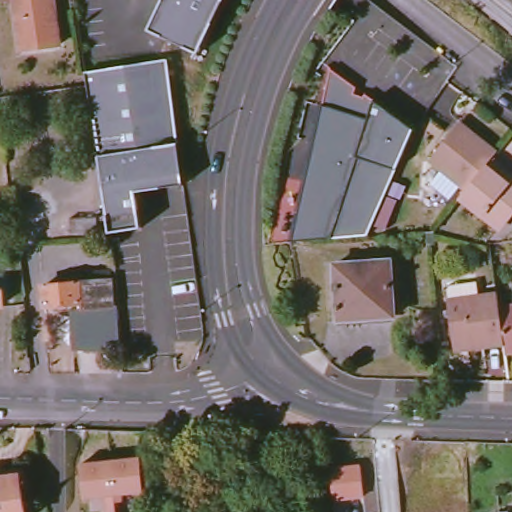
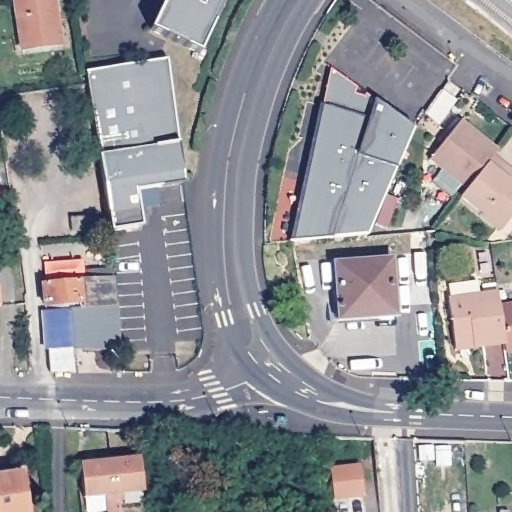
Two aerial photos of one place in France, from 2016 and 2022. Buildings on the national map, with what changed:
unchanged [(59,46),(20,51),(12,0),(52,0),(59,46)]
unchanged [(162,0),(161,0),(223,0),(198,54),(148,31),(162,0)]
unchanged [(182,143),(188,184),(140,192),(145,227),(115,231),(92,85),(90,74),(138,66),(170,60),(171,60),(182,143)]
unchanged [(303,195),(307,182),(312,158),(315,141),(323,106),(332,68),(358,88),(366,94),(414,130),(410,138),(378,213),(368,235),(305,241),(298,242),(292,242),(303,195)]
unchanged [(461,123),(499,153),(493,160),(467,192),(430,161),(461,123)]
unchanged [(501,233),(460,200),(466,194),(467,192),(493,160),(512,176),(512,219),(501,233)]
unchanged [(97,216),(97,230),(70,231),(70,217),(97,216)]
unchanged [(387,259),(393,316),(337,322),(331,265),(387,259)]
unchanged [(110,281),(112,306),(117,306),(118,324),(86,327),(85,308),(82,308),(82,304),(45,306),(43,286),(110,281)]
unchanged [(507,353),(506,345),(505,344),(505,335),(498,294),(512,292),(512,352),(507,353)]
unchanged [(473,348),(472,342),(455,344),(449,301),(498,294),(505,335),(505,344),(473,348)]
unchanged [(117,512),(108,512),(107,494),(85,496),(81,462),(140,455),(145,490),(123,492),(124,499),(116,500),(117,512)]
unchanged [(361,495),(332,497),(330,466),(357,462),(361,495)]
unchanged [(0,512),(0,479),(25,474),(32,512),(0,512)]

